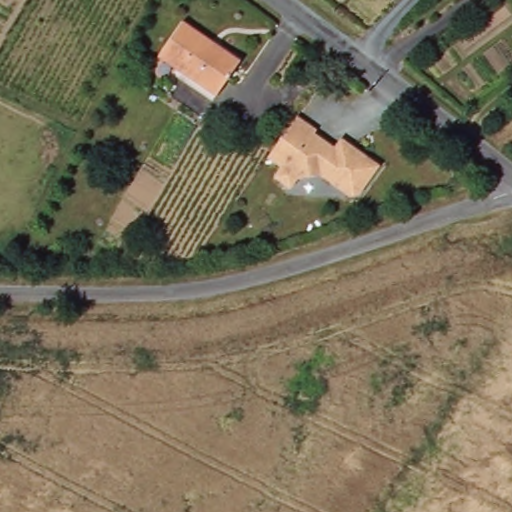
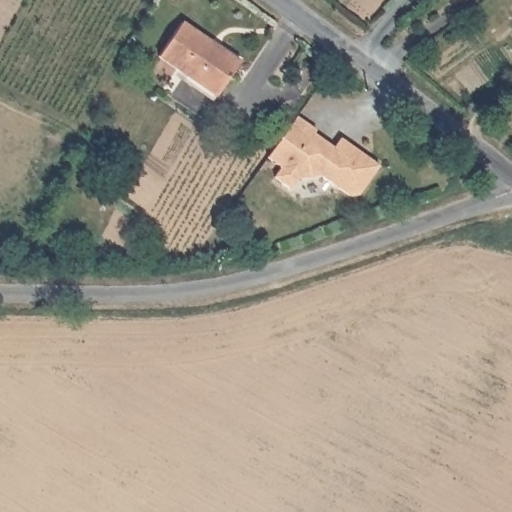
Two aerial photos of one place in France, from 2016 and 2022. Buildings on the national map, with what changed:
unchanged [(158,57),(181,23),(239,62),(216,96),(158,57)]
unchanged [(315,138),(335,153),(342,143),(353,151),(380,171),(359,200),(350,201),(321,180),(298,184),(290,194),(274,182),(282,172),(268,162),(277,150),(298,121),(317,135),(315,138)]

